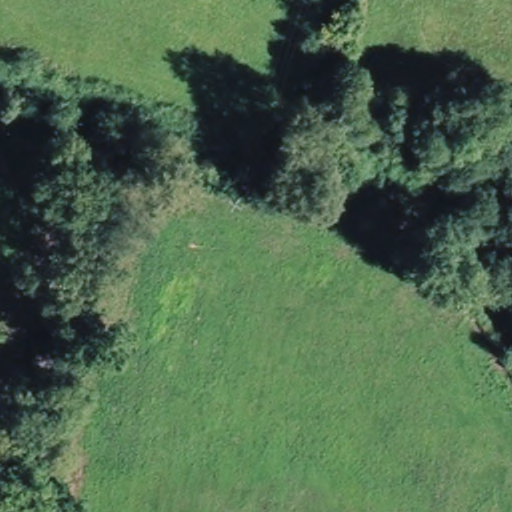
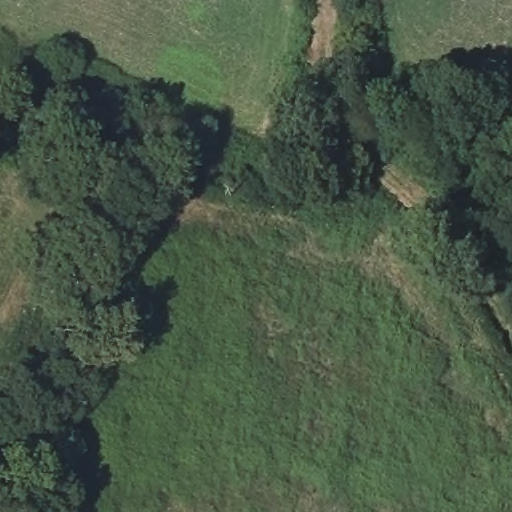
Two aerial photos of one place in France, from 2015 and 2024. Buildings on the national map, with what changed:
unchanged [(254,120),(247,144),(223,137),(230,112),(254,120)]

